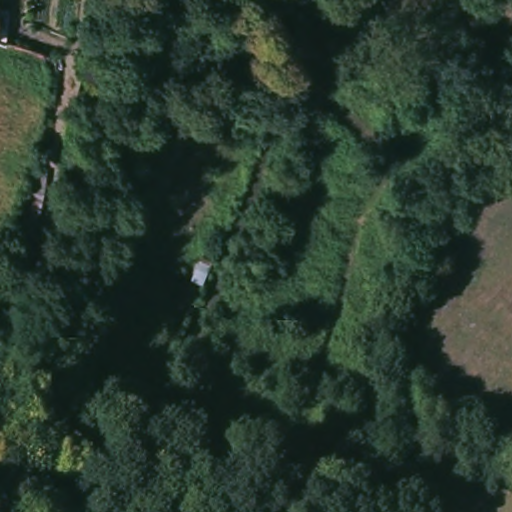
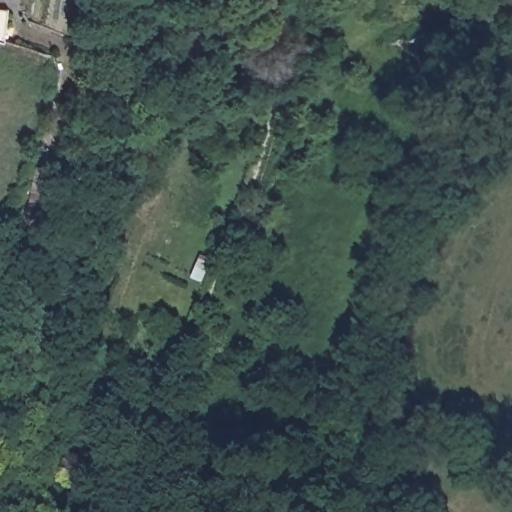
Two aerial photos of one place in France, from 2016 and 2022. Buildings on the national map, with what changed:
unchanged [(0,41),(0,16),(1,16),(0,41)]

